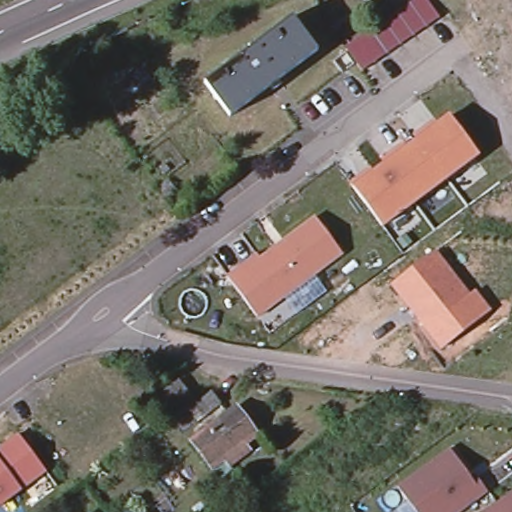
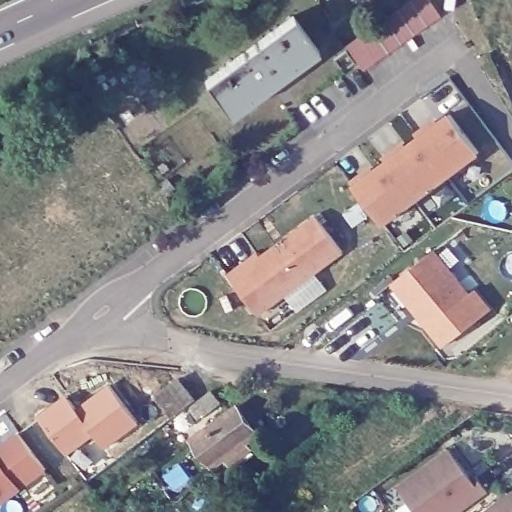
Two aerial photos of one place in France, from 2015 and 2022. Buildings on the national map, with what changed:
unchanged [(358,45),(422,0),(425,0),(442,24),(365,78),(348,53),(358,46),(358,45)]
unchanged [(203,88),(290,24),(312,54),(314,56),(227,121),(225,118),(203,88)]
unchanged [(450,111),(479,153),(384,224),(354,185),(450,111)]
unchanged [(254,254),(259,257),(315,216),(344,254),(260,318),(229,276),(254,254)]
unchanged [(471,291),(476,288),(494,310),(441,348),(392,282),(439,250),(471,291)]
unchanged [(200,400),(176,418),(159,396),(183,378),(200,400)]
new [(64,398),(75,413),(109,386),(137,426),(104,451),(91,435),(64,457),(36,419),(64,398)]
unchanged [(216,391),(226,404),(205,421),(195,407),(216,391)]
unchanged [(240,414),(259,439),(246,449),(251,456),(234,470),(228,464),(217,474),(197,448),(240,414)]
unchanged [(19,433),(47,472),(0,503),(0,446),(19,433)]
unchanged [(478,489),(482,486),(493,501),(477,512),(414,512),(404,498),(456,460),(478,489)]
unchanged [(512,508),(512,512),(506,512),(512,508)]

